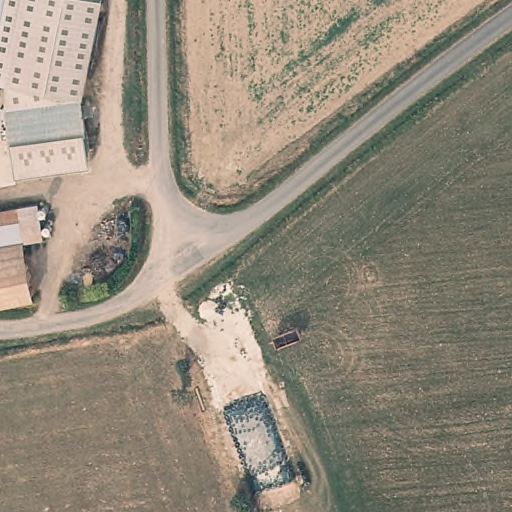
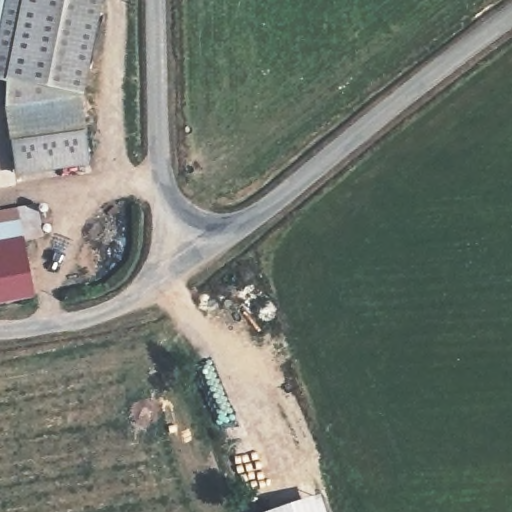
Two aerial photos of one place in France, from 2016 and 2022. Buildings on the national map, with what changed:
unchanged [(0,38),(0,0),(8,0),(0,38)]
unchanged [(86,102),(89,155),(10,158),(7,81),(0,80),(0,38),(8,0),(108,0),(86,102)]
unchanged [(44,205),(47,226),(49,240),(24,244),(34,296),(0,302),(0,211),(21,208),(44,205)]
new [(325,512),(266,512),(320,495),(325,512)]

